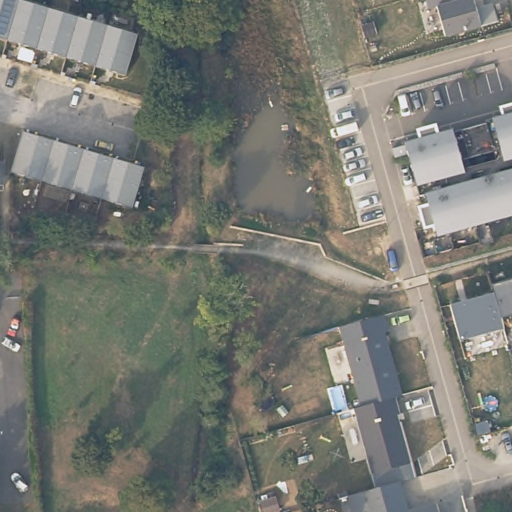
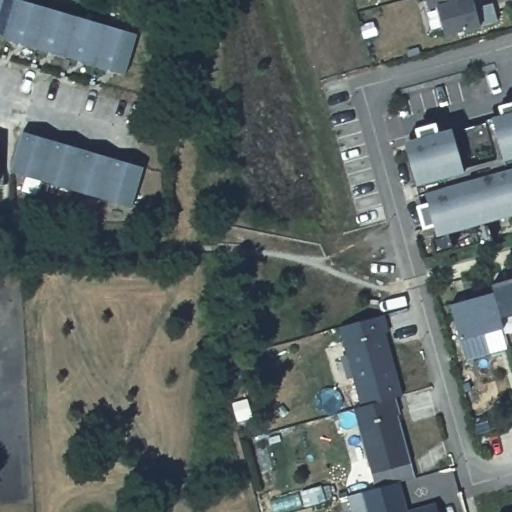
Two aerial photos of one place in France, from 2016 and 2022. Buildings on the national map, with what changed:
unchanged [(0,0),(20,0),(138,36),(126,75),(0,38),(0,0)]
unchanged [(477,0),(484,26),(444,37),(434,0),(477,0)]
unchanged [(419,136),(418,129),(437,124),(439,130),(500,115),(498,105),(512,102),(512,217),(491,223),(494,244),(480,247),(475,225),(452,230),(455,249),(434,255),(405,140),(419,136)]
unchanged [(24,132),(144,167),(133,208),(14,174),(24,132)]
unchanged [(503,318),(504,329),(461,338),(452,305),(494,293),(494,288),(512,284),(512,316),(503,318)]
unchanged [(361,403),(339,325),(384,313),(403,395),(392,397),(410,463),(372,475),(354,406),(361,403)]
unchanged [(399,483),(407,508),(436,500),(439,512),(367,512),(366,510),(354,512),(352,512),(349,495),(399,483)]

